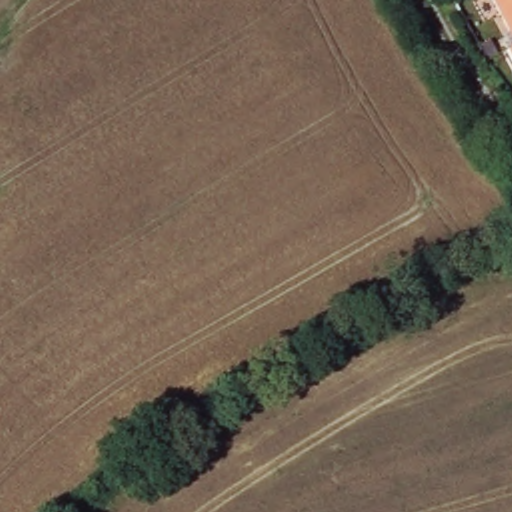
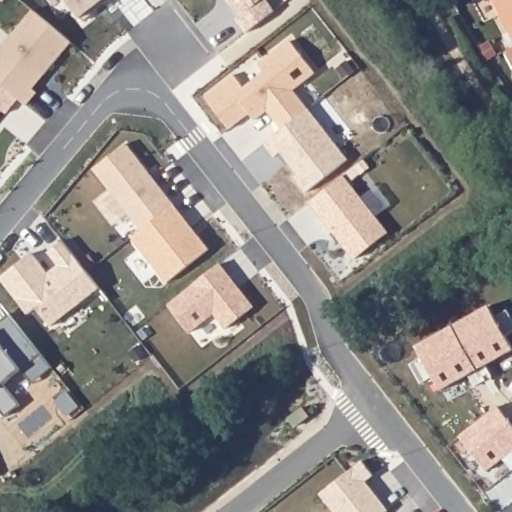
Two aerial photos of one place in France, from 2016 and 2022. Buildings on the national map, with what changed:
new [(84,20),(82,18),(68,0),(111,0),(84,20)]
new [(275,10),(247,32),(236,19),(242,14),(231,0),(267,0),(275,10)]
unchanged [(512,37),(492,0),(512,0),(512,37)]
new [(10,36),(31,8),(74,44),(24,104),(19,99),(0,83),(0,29),(10,36)]
new [(250,93),(270,77),(260,65),(292,40),(317,73),(295,90),(309,108),(286,126),(278,118),(276,120),(268,109),(234,131),(207,96),(235,74),(250,93)]
unchanged [(493,40),(498,49),(488,55),(483,45),(493,40)]
unchanged [(512,48),(512,59),(507,50),(512,48)]
new [(19,99),(7,113),(3,110),(0,114),(0,83),(19,99)]
new [(127,144),(174,204),(141,230),(94,169),(127,144)]
new [(344,175),(389,232),(355,259),(310,202),(344,175)]
new [(49,272),(58,264),(48,252),(64,239),(102,288),(51,326),(36,306),(27,313),(0,278),(32,252),(49,272)]
new [(256,306),(226,329),(214,314),(191,332),(167,303),(220,262),(256,306)]
new [(417,346),(490,306),(496,317),(508,310),(512,317),(512,332),(506,336),(512,346),(512,351),(486,365),(492,377),(476,386),(469,374),(441,390),(433,376),(421,383),(411,364),(423,358),(417,346)]
new [(512,425),(512,470),(502,458),(486,471),(460,436),(498,406),(512,425)]
new [(362,461),(373,475),(365,481),(388,510),(386,512),(333,512),(320,494),(362,461)]

